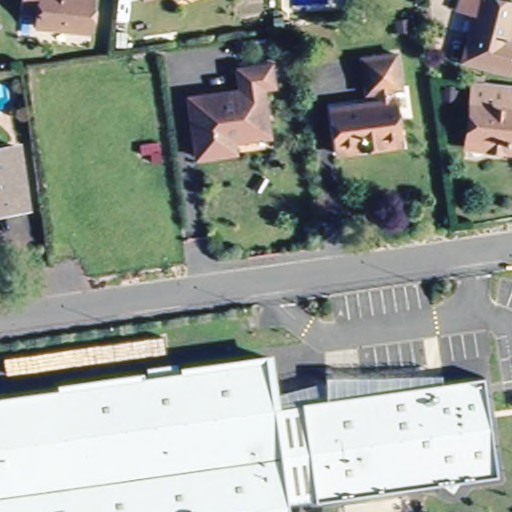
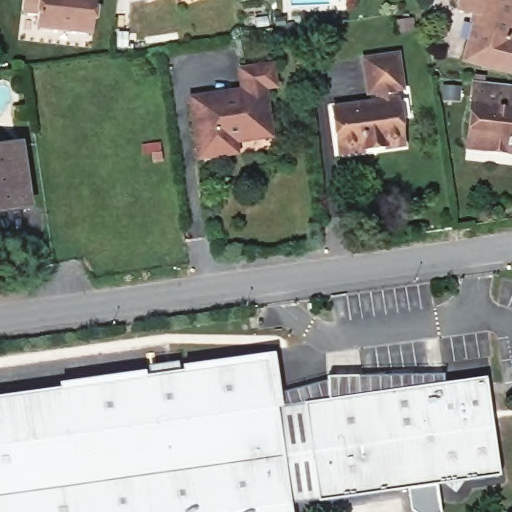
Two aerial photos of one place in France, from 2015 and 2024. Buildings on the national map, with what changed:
unchanged [(40,30),(42,16),(22,13),(25,0),(99,0),(94,37),(40,30)]
unchanged [(508,35),(512,36),(512,57),(509,68),(462,55),(474,11),(455,6),(457,0),(512,0),(512,22),(508,35)]
unchanged [(372,103),(370,91),(363,91),(360,57),(395,53),(400,96),(388,97),(390,107),(392,107),(397,146),(377,148),(377,146),(359,148),(359,151),(333,154),(328,108),(353,105),(363,104),(372,103)]
unchanged [(251,140),(216,144),(217,155),(196,158),(189,98),(241,92),(239,71),(271,67),(273,89),(262,90),(267,130),(268,137),(251,140)]
unchanged [(485,148),(465,145),(466,136),(472,92),(475,78),(482,79),(512,84),(512,152),(507,151),(485,148)]
unchanged [(12,146),(21,213),(0,216),(0,146),(12,144),(12,146)]
unchanged [(292,504),(293,512),(0,512),(0,397),(14,395),(271,357),(276,395),(292,504)]
unchanged [(330,397),(327,374),(442,371),(444,381),(330,397)]
unchanged [(486,374),(501,473),(320,500),(305,401),(330,397),(444,381),(486,374)]
unchanged [(320,500),(292,504),(276,395),(303,391),(305,401),(320,500)]

